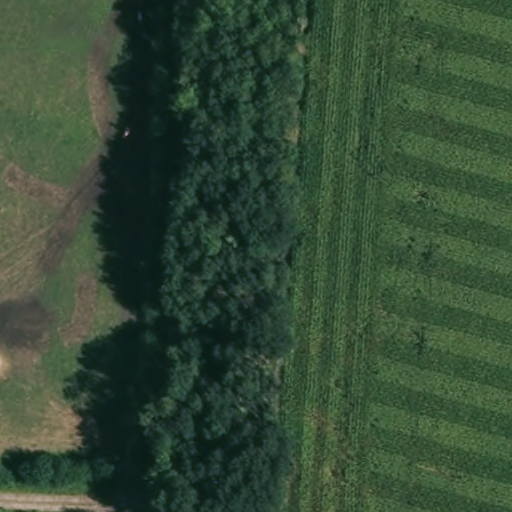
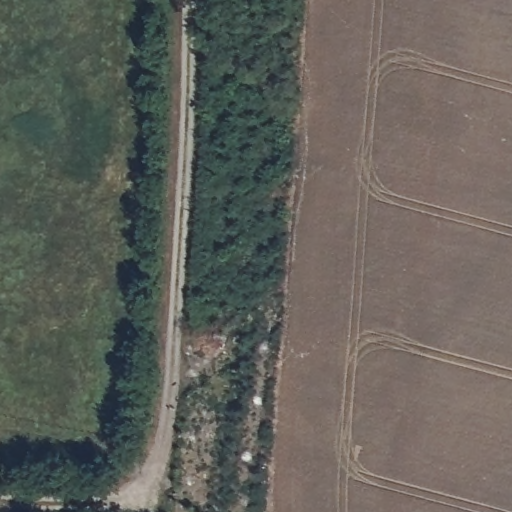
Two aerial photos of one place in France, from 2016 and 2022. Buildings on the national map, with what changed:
unchanged [(182,307),(209,310),(208,337),(180,336),(182,307)]
unchanged [(205,369),(208,337),(233,337),(230,371),(205,369)]

